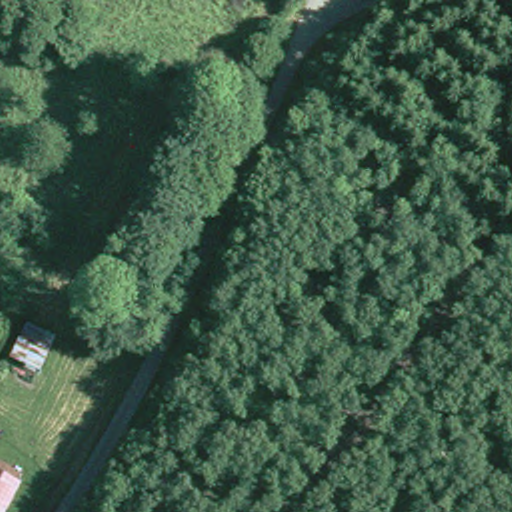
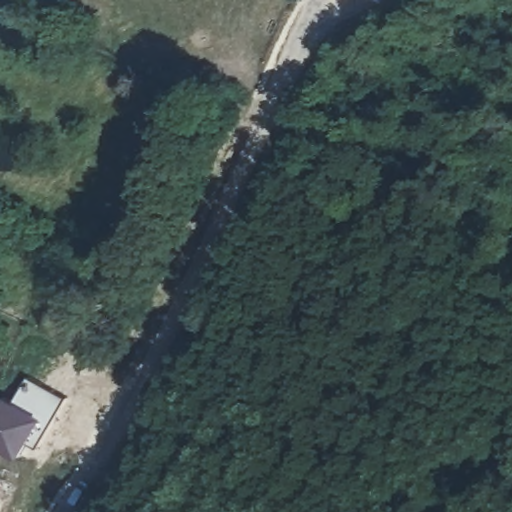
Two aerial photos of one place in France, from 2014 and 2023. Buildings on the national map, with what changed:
unchanged [(29,323),(55,339),(39,370),(15,355),(29,323)]
new [(58,416),(60,417),(56,424),(54,423),(39,448),(30,441),(30,442),(21,457),(0,445),(0,402),(5,394),(13,398),(30,375),(69,397),(58,416)]
unchanged [(0,472),(18,481),(2,512),(0,512),(0,472)]

